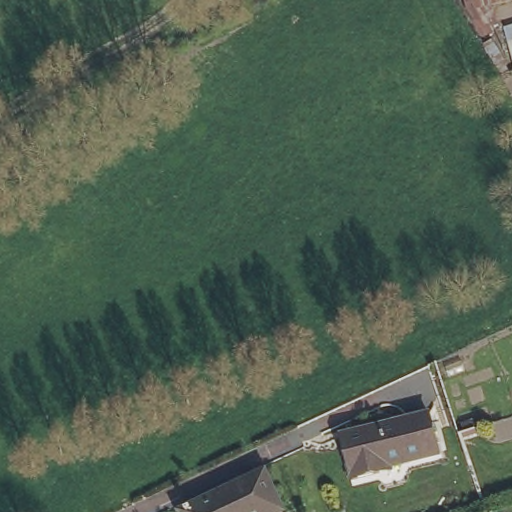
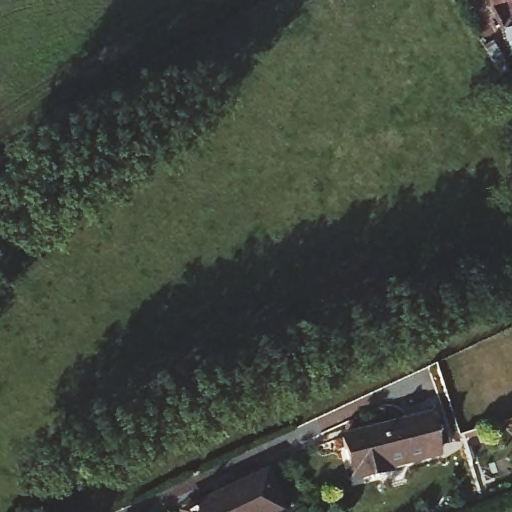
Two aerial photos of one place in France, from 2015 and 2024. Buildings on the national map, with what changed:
unchanged [(504,25),(467,32),(463,0),(512,0),(512,1),(501,3),(504,25)]
unchanged [(512,28),(512,56),(504,30),(512,28)]
unchanged [(375,427),(378,433),(385,430),(382,425),(410,411),(426,447),(392,463),(394,468),(369,480),(351,439),(375,427)]
unchanged [(220,498),(222,503),(230,500),(227,495),(257,481),(272,512),(194,512),(194,511),(220,498)]

